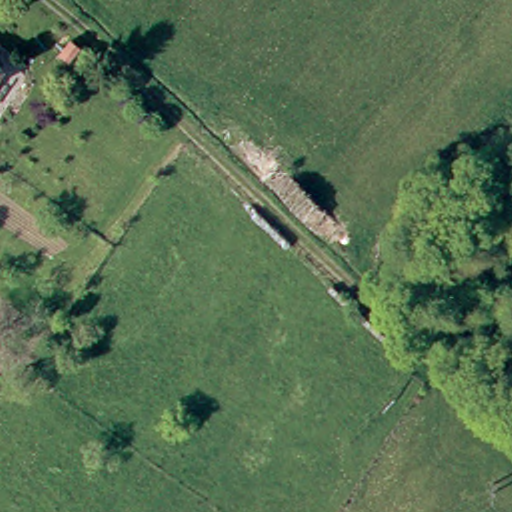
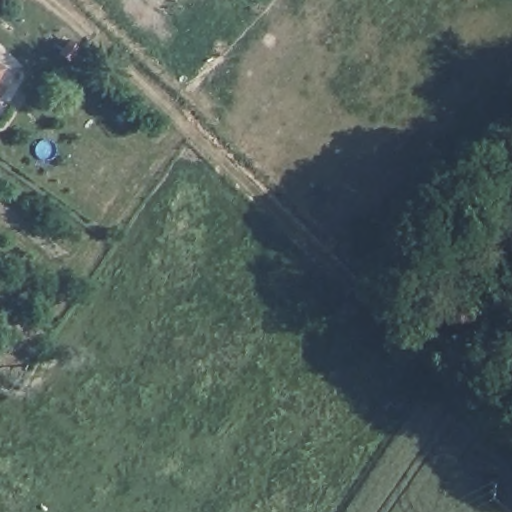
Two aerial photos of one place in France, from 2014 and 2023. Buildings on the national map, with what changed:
unchanged [(0,71),(0,65),(2,67),(0,71)]

